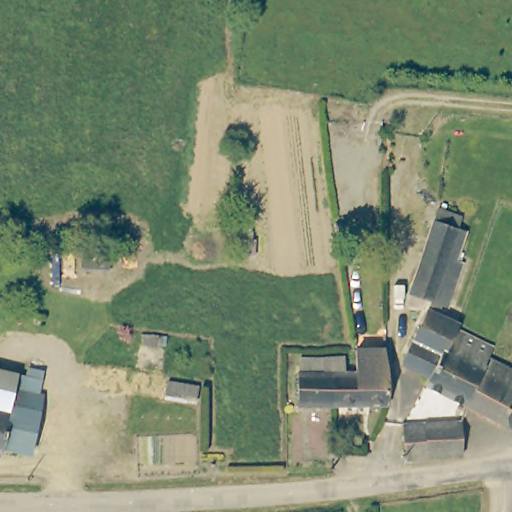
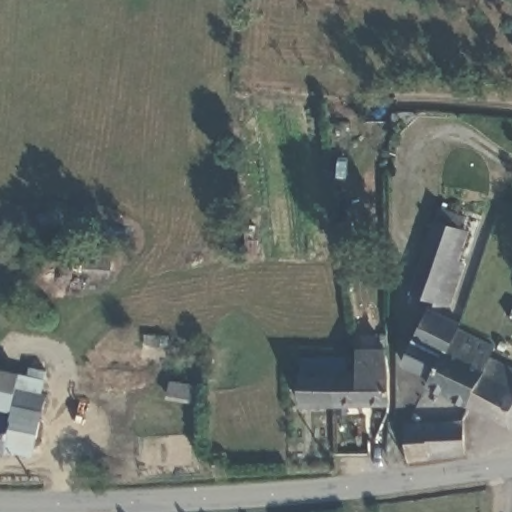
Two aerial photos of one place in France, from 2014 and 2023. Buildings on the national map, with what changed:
unchanged [(490,358),(469,403),(430,383),(433,378),(403,363),(431,307),(404,295),(422,244),(438,200),(466,209),(452,253),(467,259),(444,313),(460,321),(463,329),(495,344),(490,358)]
unchanged [(296,407),(295,370),(292,359),(320,356),(320,363),(329,363),(330,373),(360,371),(359,355),(388,357),(389,403),(361,404),(330,406),(296,407)]
unchanged [(512,423),(469,403),(490,358),(512,369),(512,423)]
unchanged [(46,394),(20,388),(15,411),(0,409),(0,372),(47,381),(46,394)]
unchanged [(201,405),(168,401),(171,382),(203,387),(201,405)]
unchanged [(15,411),(20,388),(46,394),(35,454),(8,448),(6,451),(0,450),(0,409),(15,411)]
unchanged [(407,462),(406,425),(461,421),(462,456),(407,462)]

